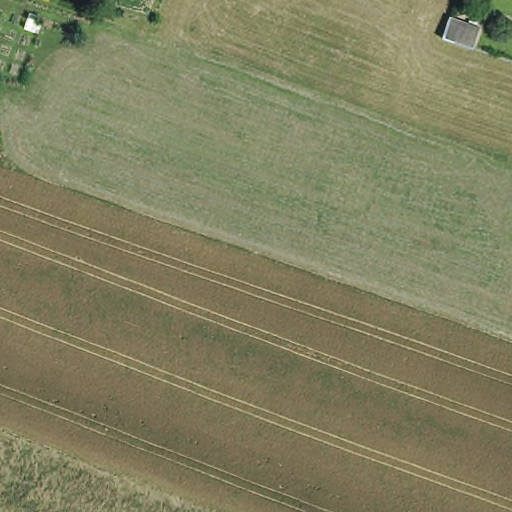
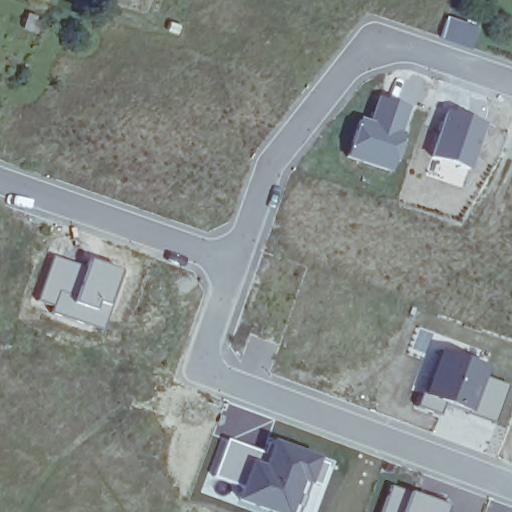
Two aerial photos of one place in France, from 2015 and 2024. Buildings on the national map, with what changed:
unchanged [(470,47),(439,38),(446,16),(477,28),(470,47)]
new [(357,116),(367,120),(377,95),(407,106),(397,141),(385,172),(342,157),(357,116)]
new [(445,109),(482,121),(466,170),(429,159),(445,109)]
new [(54,255),(84,265),(85,259),(119,270),(99,330),(50,313),(52,308),(37,302),(54,255)]
new [(441,347),(489,368),(485,377),(470,416),(430,402),(427,409),(417,406),(441,347)]
new [(485,377),(507,386),(493,426),(470,416),(485,377)]
new [(227,439),(263,453),(259,463),(252,459),(239,489),(212,478),(227,439)]
new [(305,512),(263,512),(235,501),(239,489),(252,459),(259,463),(263,453),(269,439),(319,460),(327,464),(305,512)]
new [(390,485),(448,506),(446,512),(380,512),(390,485)]

